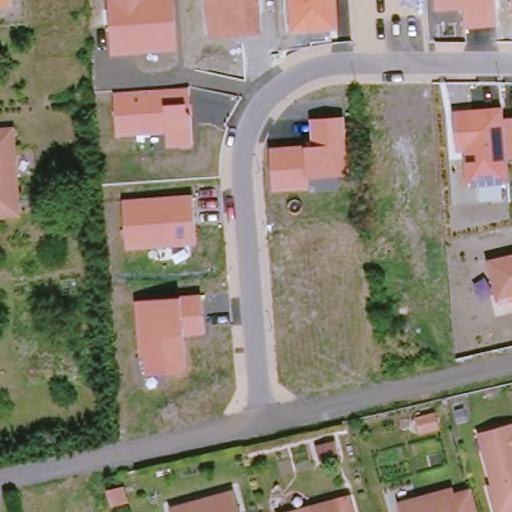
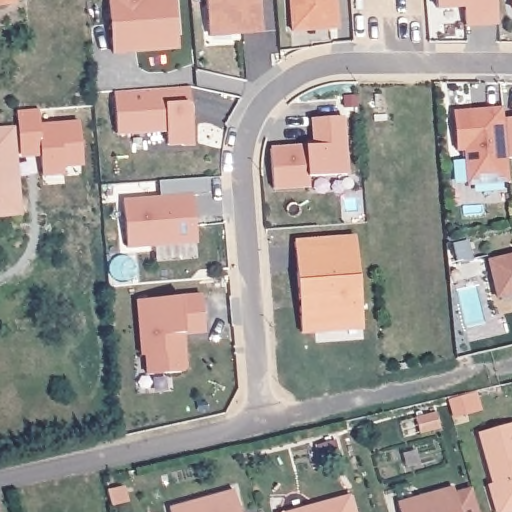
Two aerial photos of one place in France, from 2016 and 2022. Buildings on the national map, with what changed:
unchanged [(11,0),(11,4),(0,5),(0,0),(11,0)]
unchanged [(112,54),(107,0),(173,0),(177,50),(112,54)]
unchanged [(208,35),(205,0),(258,0),(260,32),(208,35)]
unchanged [(291,32),(289,0),(335,0),(337,29),(291,32)]
unchanged [(463,28),(461,8),(435,9),(434,0),(493,0),(495,25),(463,28)]
unchanged [(509,0),(512,0),(512,14),(510,13),(509,0)]
unchanged [(188,88),(189,99),(191,99),(193,148),(183,149),(182,146),(166,147),(165,131),(115,134),(112,91),(188,88)]
unchanged [(503,118),(512,117),(512,159),(507,159),(509,185),(502,185),(503,200),(480,203),(479,186),(466,188),(462,150),(455,151),(452,111),(502,108),(503,118)]
new [(38,109),(40,124),(80,123),(82,164),(64,164),(63,173),(42,173),(41,154),(22,156),(20,110),(38,109)]
unchanged [(311,144),(309,119),(342,117),(345,175),(310,177),(310,189),(272,192),(270,148),(311,144)]
unchanged [(12,130),(19,214),(0,216),(0,131),(12,130)]
unchanged [(191,194),(196,244),(125,249),(121,199),(191,194)]
new [(355,235),(362,330),(301,334),(295,239),(355,235)]
unchanged [(512,294),(496,298),(487,259),(512,254),(512,294)]
unchanged [(179,299),(179,294),(202,294),(205,334),(184,337),(186,372),(145,374),(143,354),(138,355),(135,300),(179,299)]
unchanged [(436,414),(440,429),(420,434),(417,419),(436,414)]
unchanged [(512,427),(512,512),(502,512),(496,493),(501,492),(485,435),(497,432),(512,427)]
unchanged [(235,489),(241,512),(171,512),(170,507),(235,489)]
unchanged [(455,497),(471,492),(476,512),(399,512),(397,507),(453,492),(455,497)]
unchanged [(355,496),(360,512),(293,512),(355,496)]

